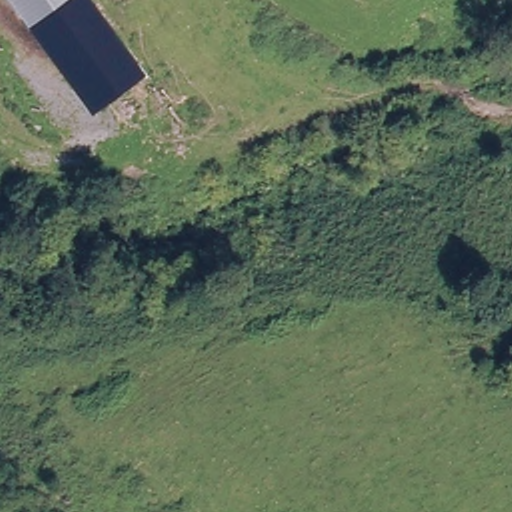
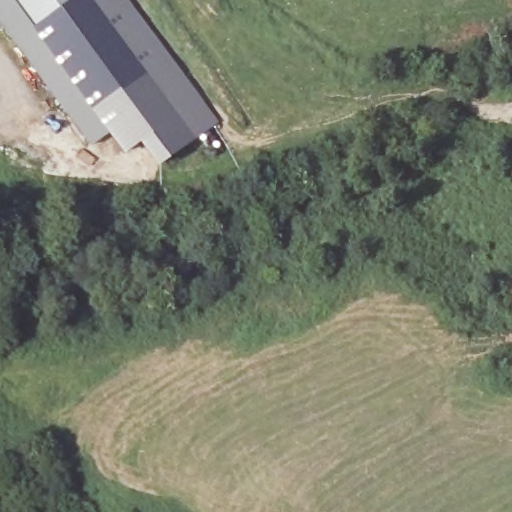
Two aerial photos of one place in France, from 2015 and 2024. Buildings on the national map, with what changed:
new [(57,64),(94,113),(146,74),(115,31),(94,0),(131,0),(220,122),(194,141),(157,167),(138,143),(124,155),(107,133),(89,146),(0,25),(0,0),(10,0),(30,27),(57,64)]
unchanged [(10,0),(74,0),(30,27),(10,0)]
unchanged [(94,0),(115,31),(146,74),(94,113),(57,64),(30,27),(74,0),(94,0)]

